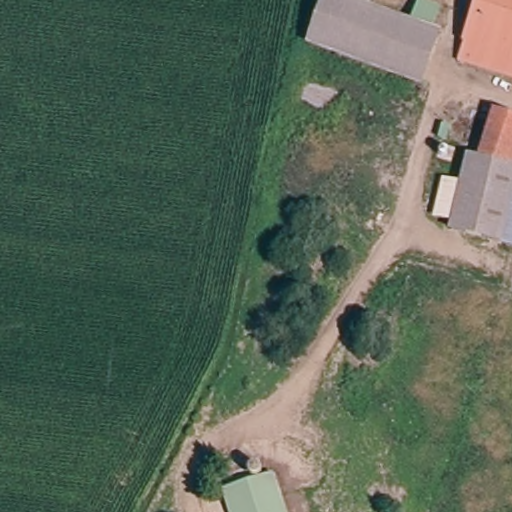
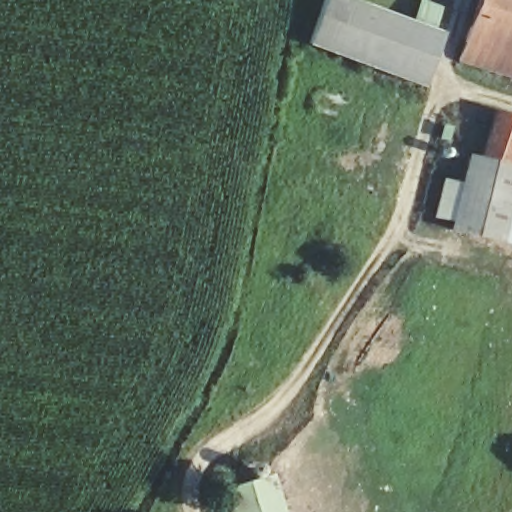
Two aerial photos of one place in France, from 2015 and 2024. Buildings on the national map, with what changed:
unchanged [(424,83),(313,48),(323,15),(327,0),(340,0),(441,31),(436,48),(424,83)]
unchanged [(464,66),(482,0),(512,0),(512,81),(464,66)]
unchanged [(485,126),(512,134),(512,138),(500,171),(472,162),(485,126)]
unchanged [(444,232),(444,224),(429,218),(441,181),(458,185),(465,160),(472,162),(500,171),(512,175),(512,253),(444,232)]
unchanged [(276,478),(282,512),(238,512),(234,487),(276,478)]

